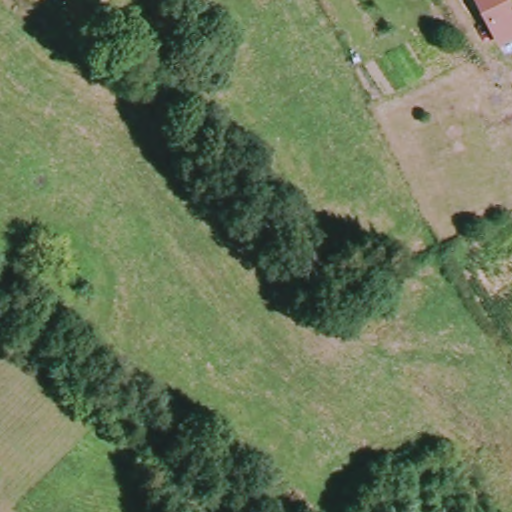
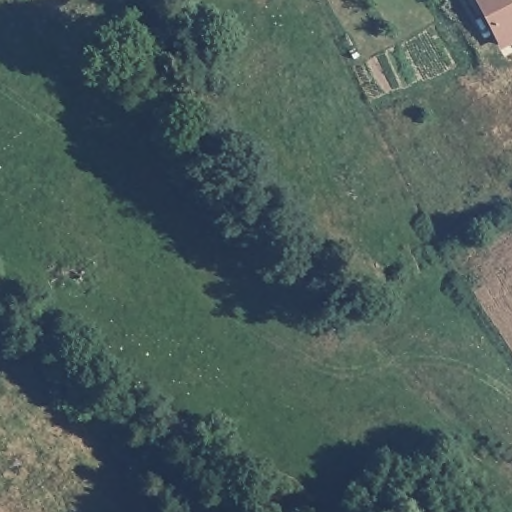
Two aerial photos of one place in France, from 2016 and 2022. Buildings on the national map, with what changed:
unchanged [(512,7),(512,43),(498,51),(474,0),(509,0),(512,7)]

